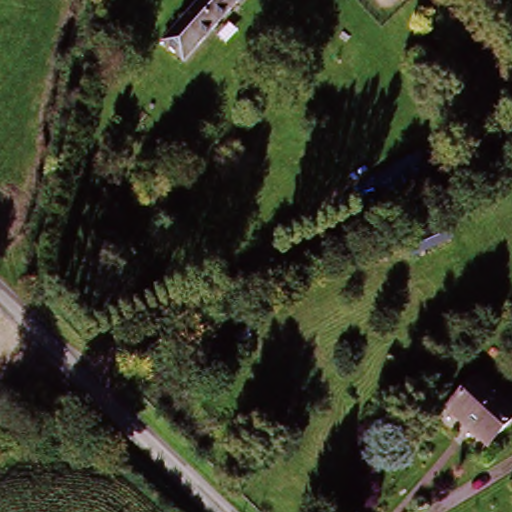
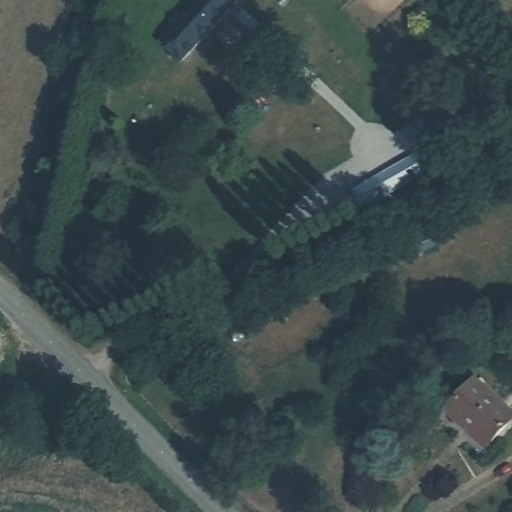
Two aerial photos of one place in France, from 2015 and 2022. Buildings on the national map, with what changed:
unchanged [(183,69),(159,50),(201,0),(239,0),(183,69)]
unchanged [(426,175),(365,207),(354,185),(415,154),(426,175)]
unchanged [(446,412),(479,383),(512,418),(512,429),(490,449),(469,427),(464,432),(446,412)]

